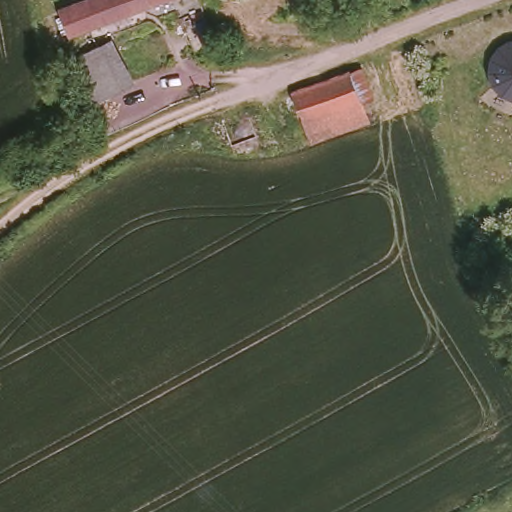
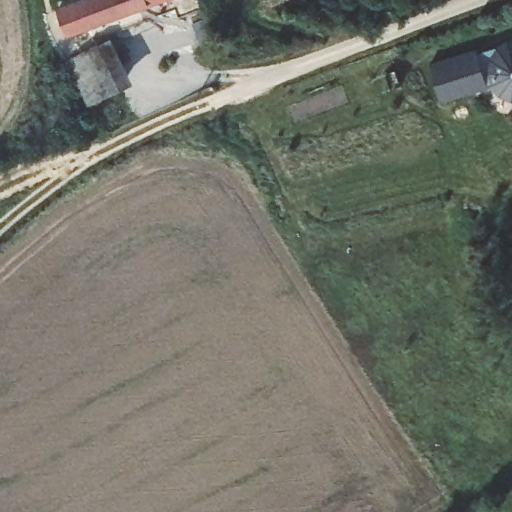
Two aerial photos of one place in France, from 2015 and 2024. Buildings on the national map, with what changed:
unchanged [(67,6),(81,0),(148,0),(72,35),(58,10),(67,6)]
unchanged [(512,101),(511,100),(502,96),(495,90),(490,81),(487,70),(489,57),(497,45),(512,42),(512,101)]
new [(489,57),(487,70),(490,81),(492,84),(442,100),(430,62),(477,49),(478,52),(497,45),(489,57)]
unchanged [(77,66),(77,65),(72,57),(85,52),(89,60),(105,53),(124,90),(97,104),(80,71),(77,66)]
demolished [(348,71),(363,67),(373,95),(362,100),(368,117),(309,139),(290,90),(348,71)]
demolished [(257,105),(265,134),(232,142),(222,116),(257,105)]

